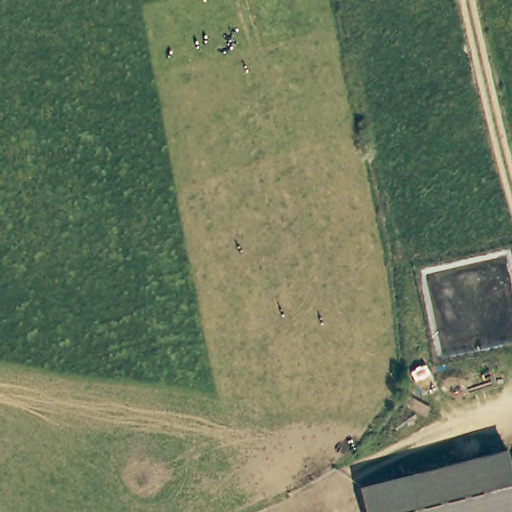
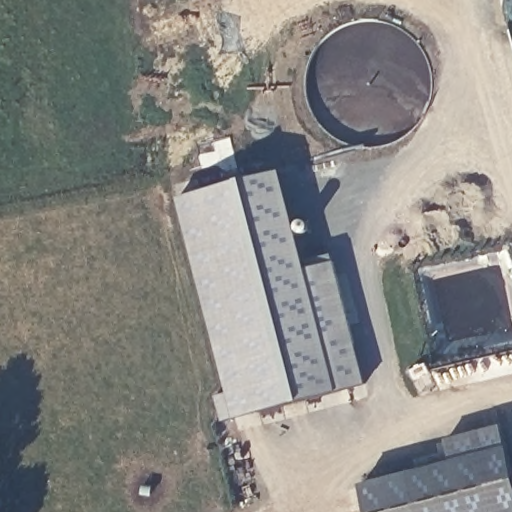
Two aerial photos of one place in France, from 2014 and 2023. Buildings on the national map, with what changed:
new [(366,384),(233,418),(220,422),(213,397),(226,393),(176,199),(279,172),(304,263),(331,256),(366,384)]
unchanged [(368,512),(361,487),(506,450),(512,472),(512,512),(368,512)]

